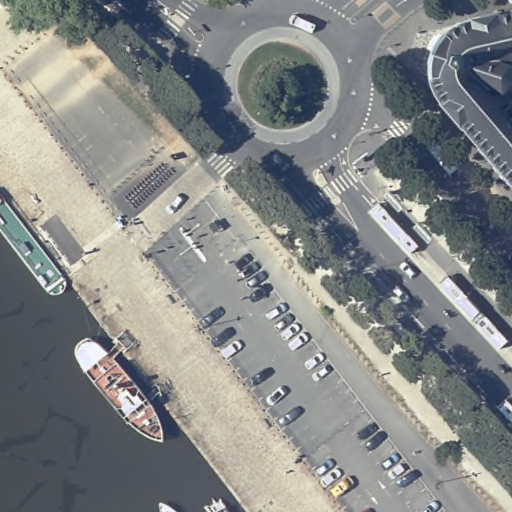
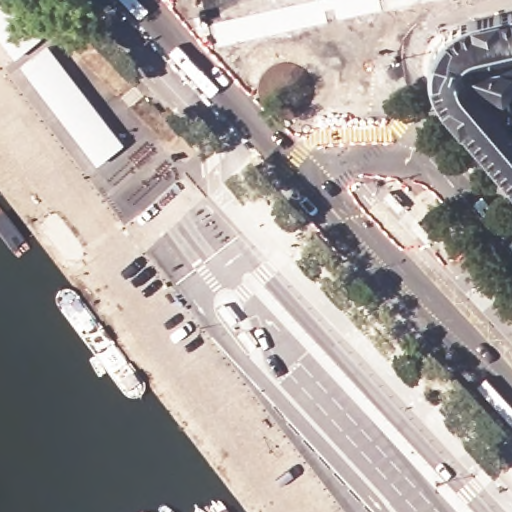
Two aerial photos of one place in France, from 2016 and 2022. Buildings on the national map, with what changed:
unchanged [(464,127),(446,104),(446,103),(442,98),(440,94),(438,91),(436,87),(435,83),(434,79),(433,74),(433,70),(433,66),(433,62),(434,57),(435,53),(437,49),(439,45),(441,42),(444,38),(446,35),(449,32),(453,29),(456,27),(460,25),(464,23),(474,20),(474,18),(503,12),(503,13),(512,11),(512,90),(510,92),(508,94),(512,100),(512,179),(466,125),(464,127)]
new [(95,167),(18,67),(47,45),(123,145),(95,167)]

